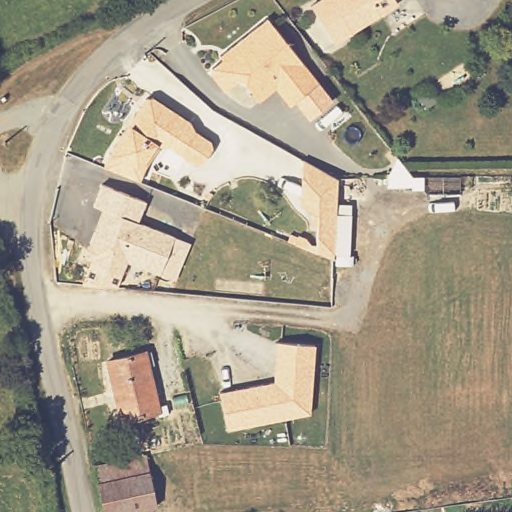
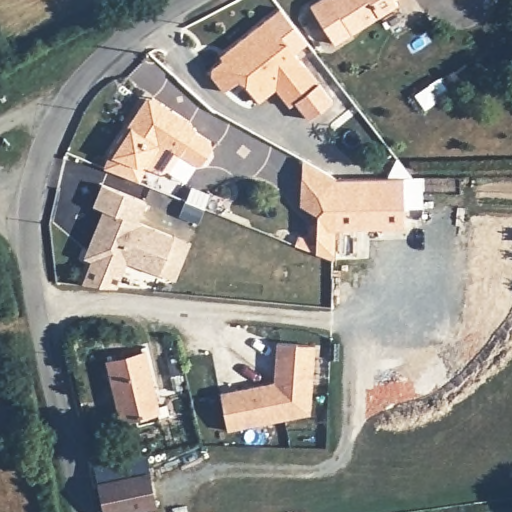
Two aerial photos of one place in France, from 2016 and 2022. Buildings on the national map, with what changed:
unchanged [(333,40),(311,0),(398,0),(399,2),(333,40)]
unchanged [(220,62),(217,58),(223,54),(265,21),(316,86),(287,109),(273,91),(256,104),(243,87),(235,82),(221,94),(208,77),(209,70),(220,62)]
unchanged [(431,87),(441,102),(426,111),(417,96),(431,87)]
unchanged [(196,134),(213,145),(214,152),(204,166),(197,168),(170,150),(161,149),(146,171),(111,157),(142,110),(147,101),(154,100),(162,105),(192,125),(196,134)]
unchanged [(311,166),(336,180),(333,262),(316,255),(318,217),(301,207),(302,162),(311,166)]
new [(425,176),(425,192),(423,192),(424,207),(405,207),(406,228),(334,230),(336,180),(425,176)]
unchanged [(139,220),(176,235),(160,272),(128,260),(123,271),(85,255),(96,230),(105,207),(95,204),(103,182),(147,199),(139,220)]
unchanged [(317,346),(311,417),(227,434),(220,392),(273,381),(275,343),(317,346)]
unchanged [(107,362),(144,354),(158,414),(121,422),(107,362)]
unchanged [(155,507),(130,512),(104,512),(94,466),(146,456),(155,507)]

